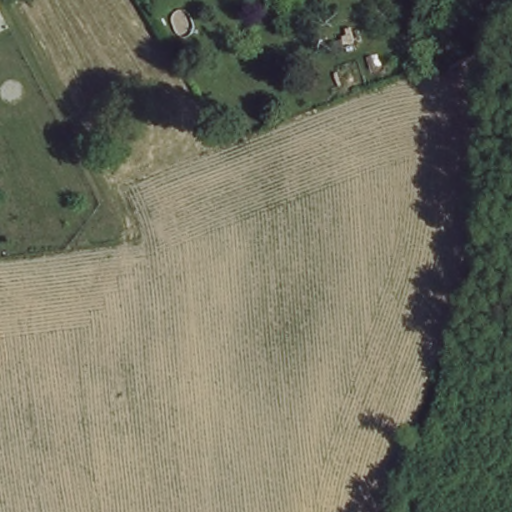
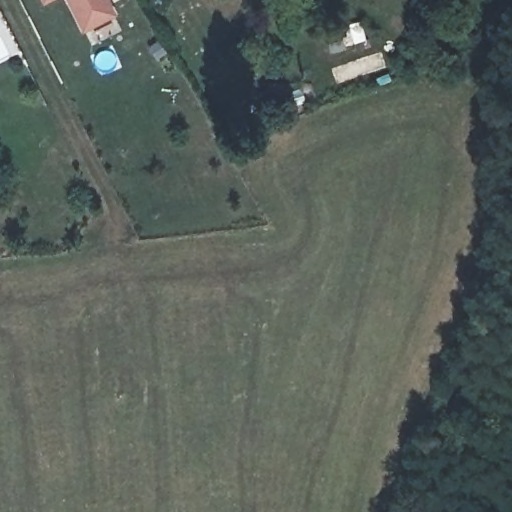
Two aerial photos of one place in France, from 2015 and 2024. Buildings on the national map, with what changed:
new [(40,0),(46,0),(41,2),(40,0)]
new [(80,31),(65,0),(108,0),(114,13),(80,31)]

